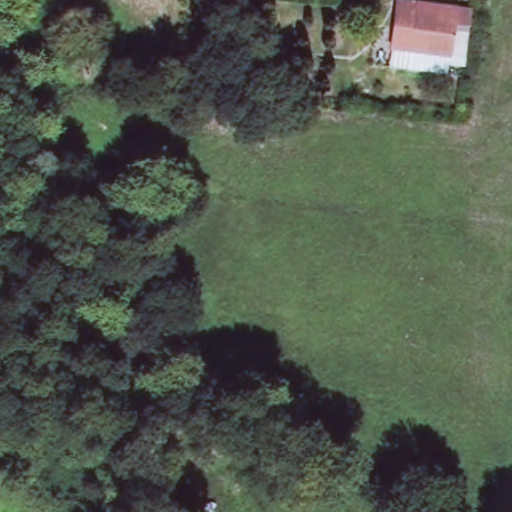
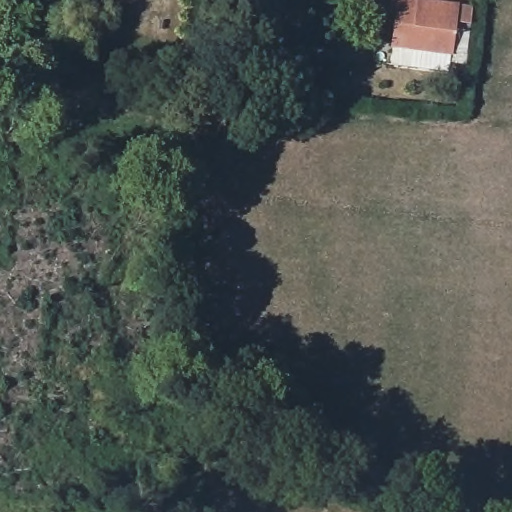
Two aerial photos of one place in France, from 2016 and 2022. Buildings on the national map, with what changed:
unchanged [(397,0),(420,0),(462,5),(460,21),(474,24),(469,57),(454,54),(449,75),(412,70),(414,51),(391,46),(397,0)]

